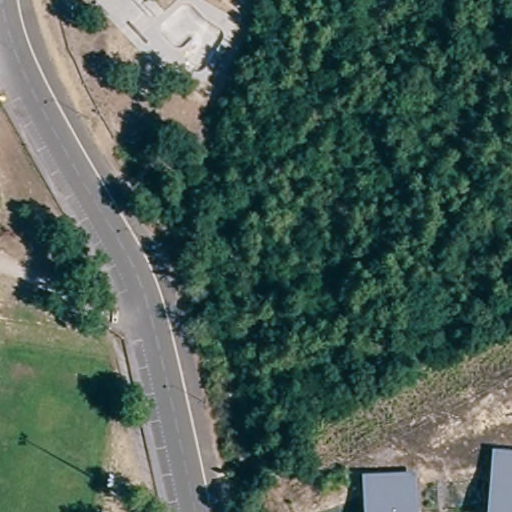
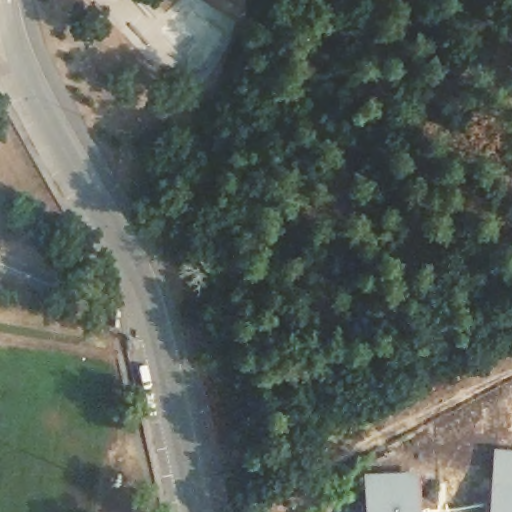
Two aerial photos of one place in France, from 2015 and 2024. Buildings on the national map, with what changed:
unchanged [(491,450),(512,452),(512,512),(484,512),(491,450)]
unchanged [(360,473),(408,471),(409,512),(361,512),(360,473)]

